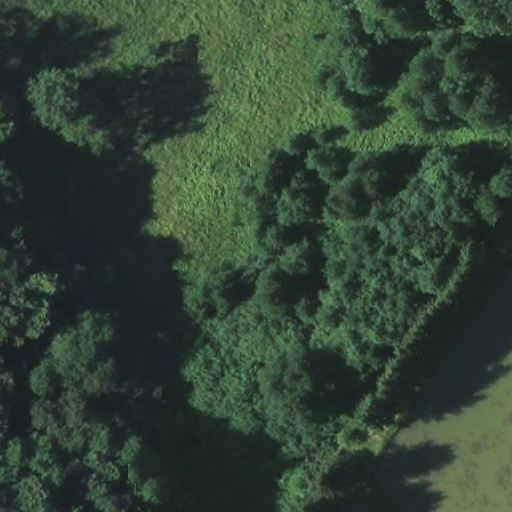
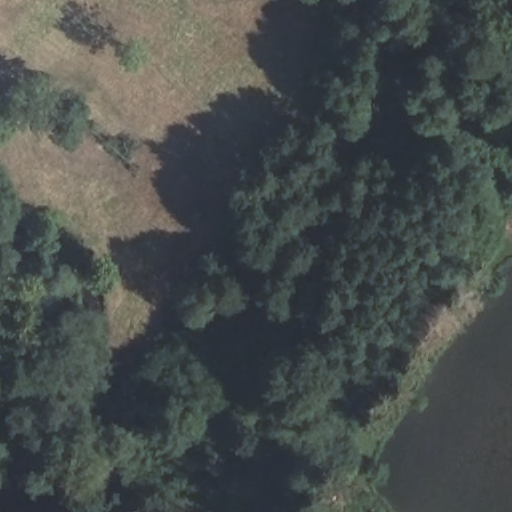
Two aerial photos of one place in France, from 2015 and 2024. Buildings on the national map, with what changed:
[]

